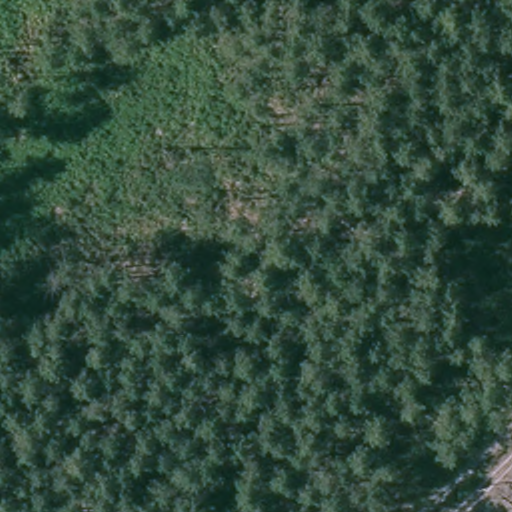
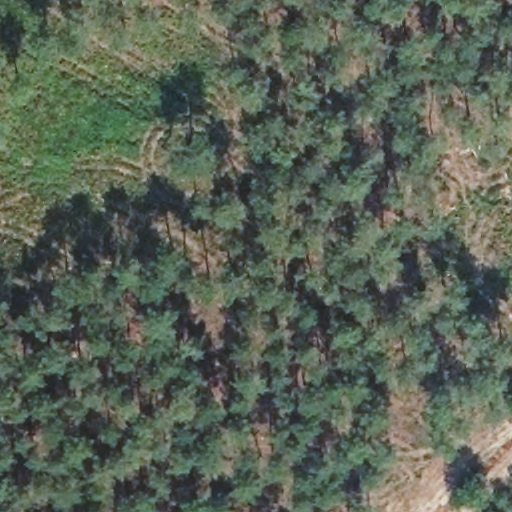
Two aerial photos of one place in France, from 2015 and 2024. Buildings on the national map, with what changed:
[]

